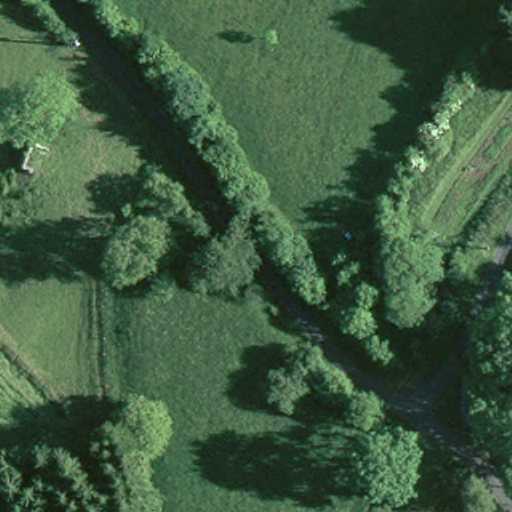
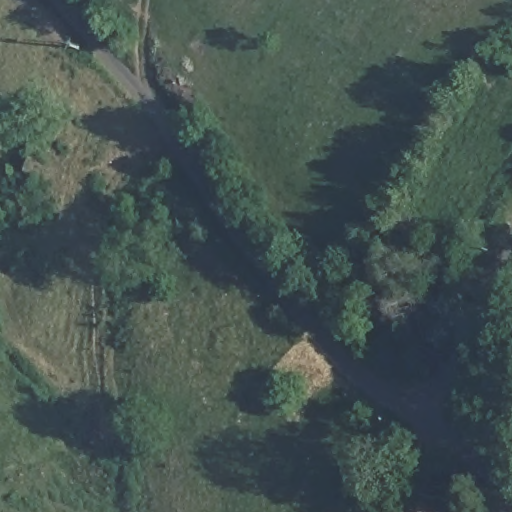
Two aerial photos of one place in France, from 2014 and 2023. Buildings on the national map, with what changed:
[]

